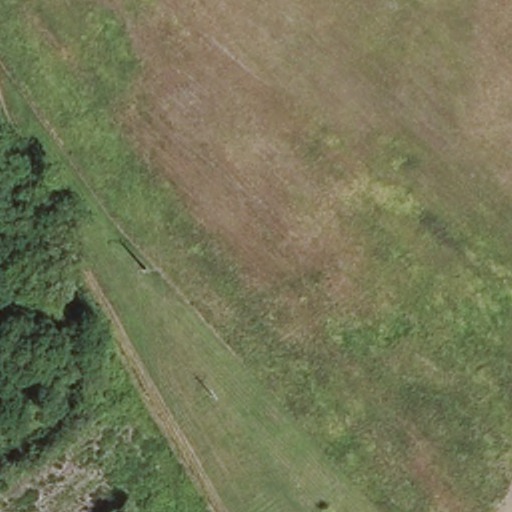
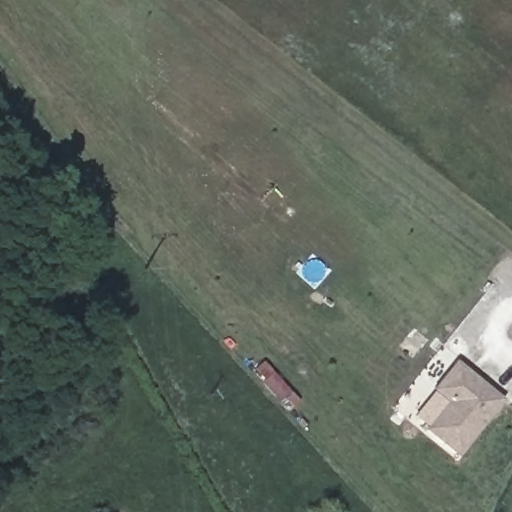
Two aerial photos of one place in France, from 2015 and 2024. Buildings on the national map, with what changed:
new [(458,455),(426,428),(448,401),(433,388),(456,359),(505,398),(458,455)]

